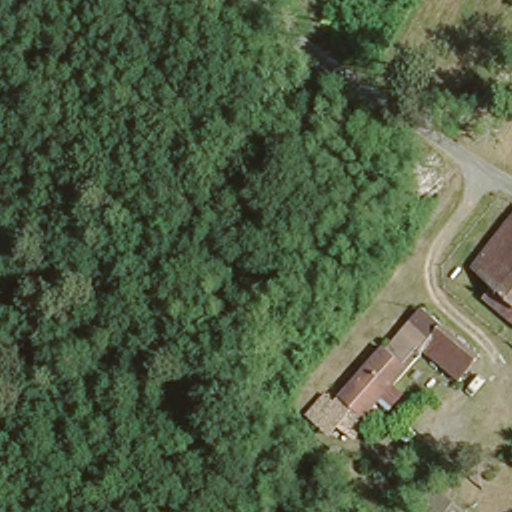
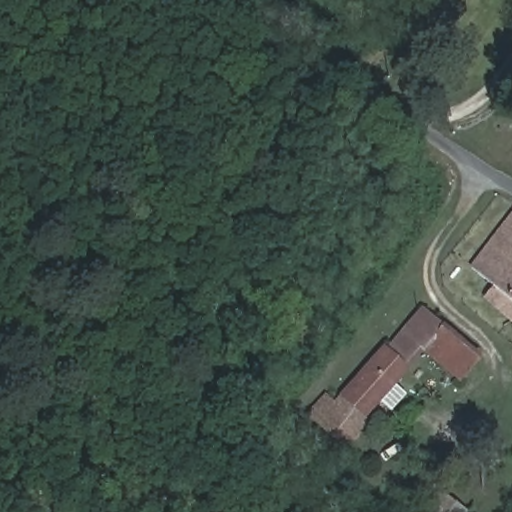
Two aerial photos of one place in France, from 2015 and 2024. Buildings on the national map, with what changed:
unchanged [(484,293),(493,283),(469,262),(512,210),(512,318),(510,316),(484,293)]
unchanged [(441,319),(436,326),(446,334),(452,328),(480,351),(457,377),(420,346),(363,413),(365,420),(353,434),(335,421),(326,432),(305,414),(323,392),(333,400),(380,343),(384,346),(420,302),(441,319)]
unchanged [(450,512),(428,512),(420,505),(438,481),(460,497),(450,512)]

